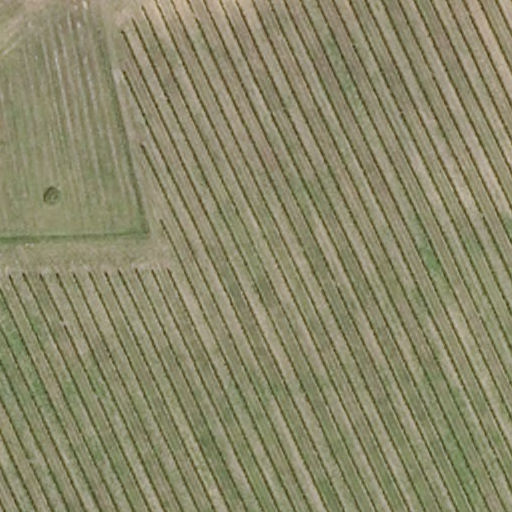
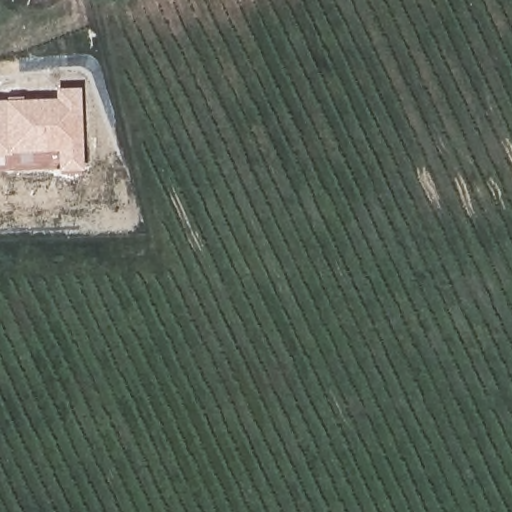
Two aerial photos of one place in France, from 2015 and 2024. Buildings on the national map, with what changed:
new [(58,171),(58,151),(10,152),(10,155),(0,155),(0,100),(57,99),(57,89),(83,88),(83,170),(58,171)]

